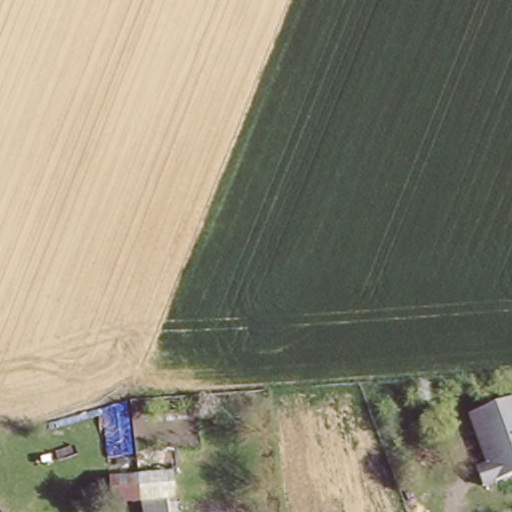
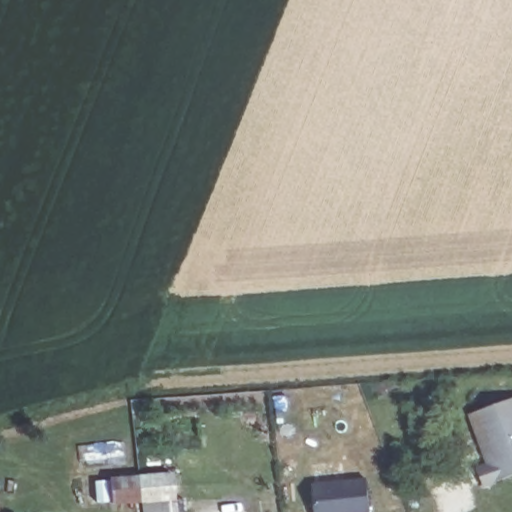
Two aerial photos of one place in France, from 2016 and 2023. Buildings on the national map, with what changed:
unchanged [(512,479),(487,488),(478,468),(492,462),(473,414),(512,400),(512,479)]
unchanged [(113,507),(110,479),(177,473),(179,498),(180,512),(146,512),(145,504),(113,507)]
new [(365,480),(368,512),(315,512),(313,483),(365,480)]

